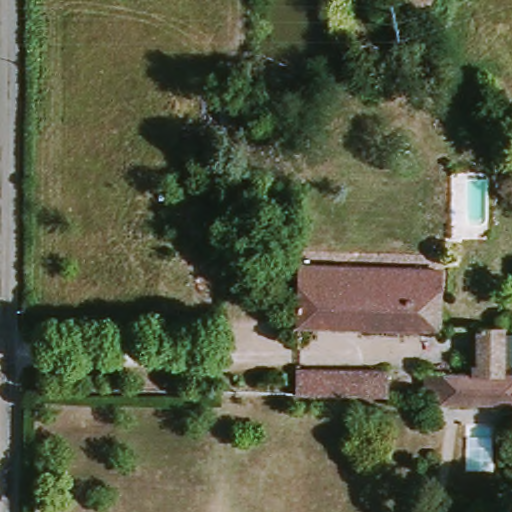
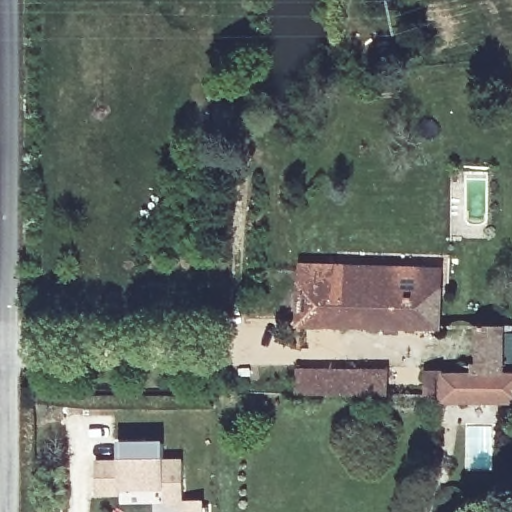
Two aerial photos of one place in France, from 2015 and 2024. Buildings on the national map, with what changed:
unchanged [(430,276),(430,314),(454,314),(455,333),(296,334),(296,276),(430,276)]
unchanged [(479,327),(502,327),(502,378),(478,377),(479,327)]
unchanged [(295,375),(387,375),(388,400),(294,399),(295,375)]
unchanged [(436,409),(436,402),(421,401),(420,376),(437,377),(478,377),(502,378),(512,378),(512,412),(436,409)]
new [(96,493),(95,463),(119,463),(118,444),(163,444),(164,462),(182,461),(183,503),(163,504),(119,504),(119,494),(96,493)]

